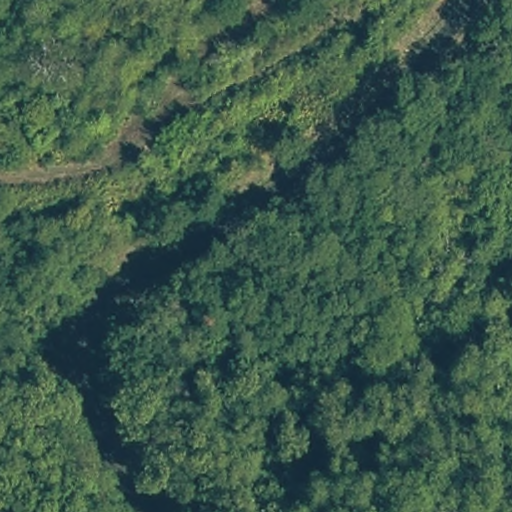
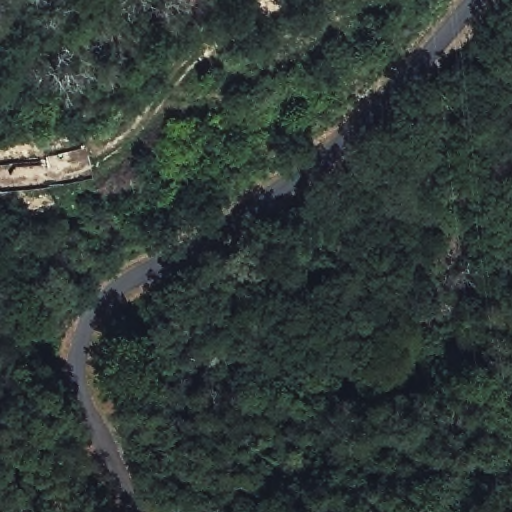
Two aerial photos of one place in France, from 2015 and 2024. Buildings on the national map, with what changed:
[]

